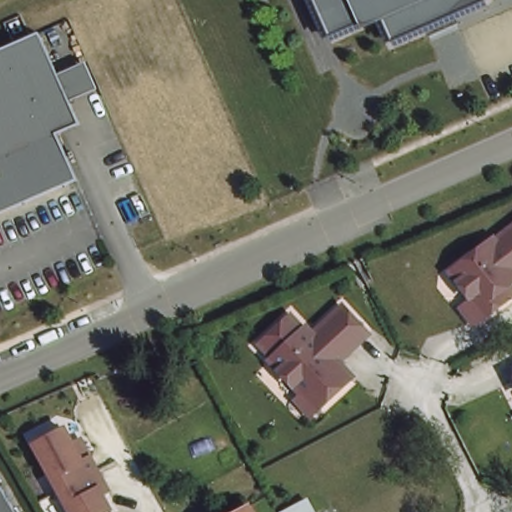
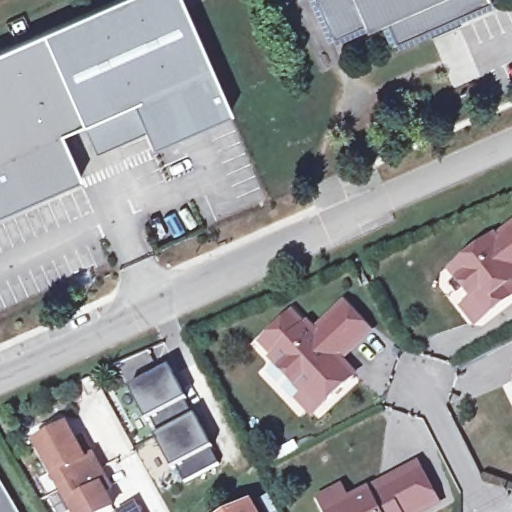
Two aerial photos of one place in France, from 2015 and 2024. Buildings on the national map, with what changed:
new [(112,0),(178,0),(228,113),(152,146),(133,104),(81,125),(71,103),(60,80),(39,30),(112,0)]
unchanged [(395,39),(386,16),(364,24),(333,36),(317,0),(490,0),(395,39)]
unchanged [(61,137),(78,181),(15,210),(14,204),(0,211),(0,46),(39,30),(60,80),(71,103),(81,125),(61,137)]
unchanged [(464,302),(474,294),(453,267),(495,233),(497,235),(512,224),(512,278),(507,282),(512,290),(512,292),(487,311),(477,319),(464,302)]
unchanged [(372,332),(341,359),(355,374),(323,403),(311,388),(307,392),(274,356),(276,353),(264,340),(294,313),(307,326),(310,324),(316,330),(348,303),(372,332)]
new [(169,366),(186,398),(184,399),(192,414),(158,433),(149,417),(145,420),(128,387),(169,366)]
new [(158,433),(192,414),(194,413),(211,446),(209,447),(217,462),(183,480),(174,465),(170,467),(153,435),(158,433)]
unchanged [(113,506),(102,512),(74,512),(38,442),(68,425),(74,438),(83,434),(93,453),(100,467),(112,488),(106,491),(113,506)]
new [(323,512),(316,499),(341,485),(349,498),(368,487),(418,461),(424,472),(436,494),(440,504),(428,512),(323,512)]
unchanged [(0,512),(0,479),(19,512),(0,512)]

